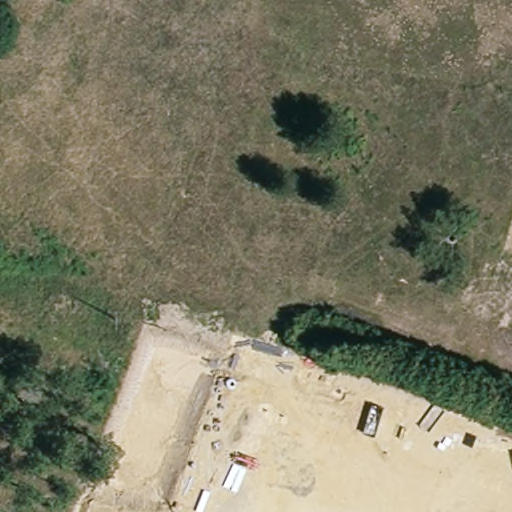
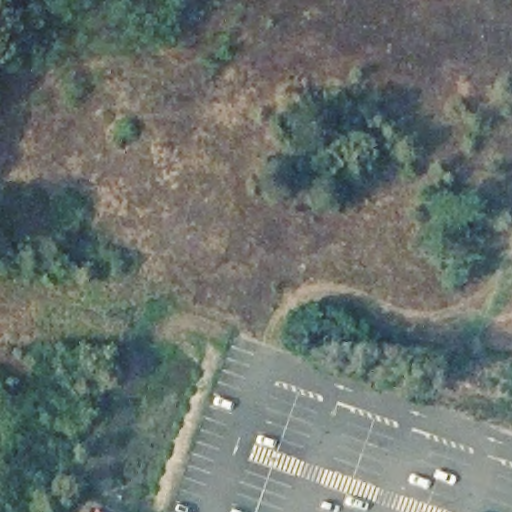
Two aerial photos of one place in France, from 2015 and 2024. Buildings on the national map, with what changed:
[]

